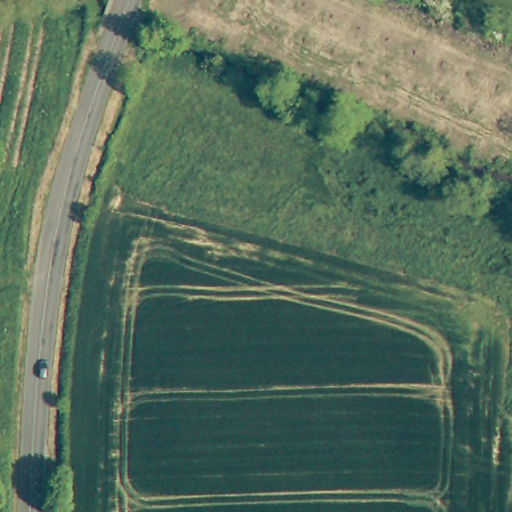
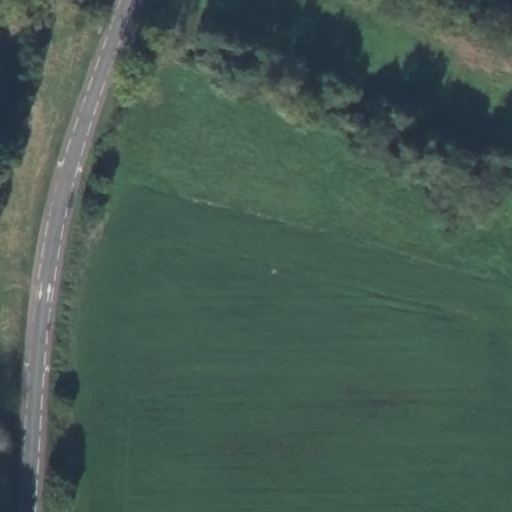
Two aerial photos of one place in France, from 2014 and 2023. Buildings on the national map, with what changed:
[]

